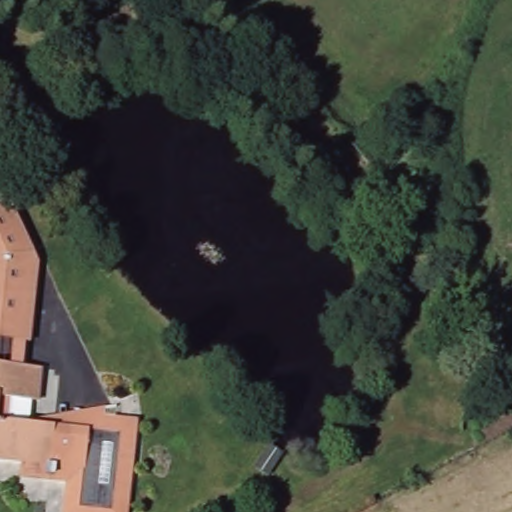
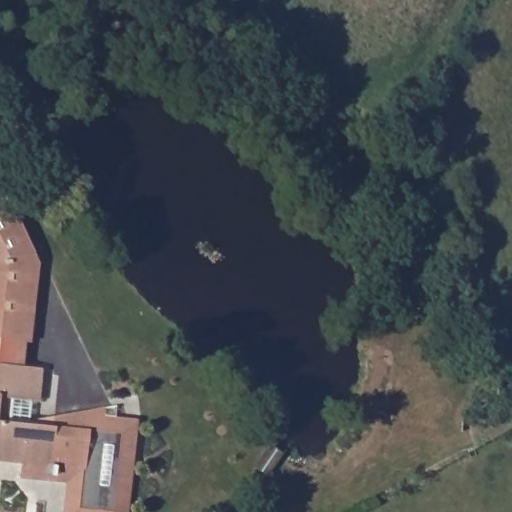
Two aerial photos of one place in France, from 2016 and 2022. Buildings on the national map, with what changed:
unchanged [(40,278),(36,279),(30,327),(0,323),(0,215),(28,210),(40,278)]
unchanged [(25,367),(0,364),(0,323),(30,327),(25,367)]
unchanged [(43,482),(18,478),(20,464),(0,461),(0,364),(25,367),(36,369),(43,370),(42,377),(40,397),(39,405),(32,403),(29,424),(87,414),(105,411),(113,410),(116,409),(114,427),(131,430),(121,512),(123,512),(64,512),(67,485),(65,485),(43,482)]

